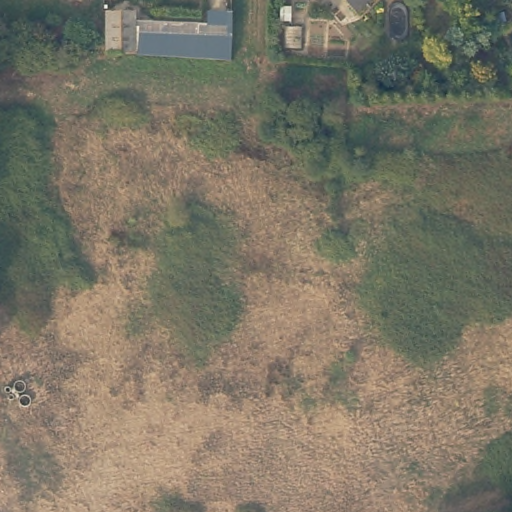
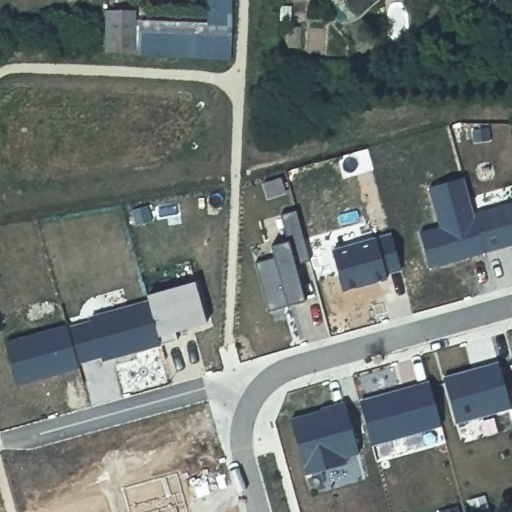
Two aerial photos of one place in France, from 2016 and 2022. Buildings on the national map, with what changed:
unchanged [(356,6),(349,0),(362,0),(356,6)]
unchanged [(135,50),(103,49),(103,7),(134,6),(135,50)]
unchanged [(233,22),(234,60),(142,58),(144,44),(161,43),(163,22),(233,22)]
new [(430,187),(464,178),(472,212),(512,203),(512,244),(484,252),(453,260),(451,257),(444,259),(444,264),(429,267),(419,232),(439,227),(430,187)]
new [(297,211),(309,261),(295,261),(305,302),(288,306),(288,303),(269,311),(255,262),(274,255),(271,247),(289,242),(282,214),(297,211)]
new [(195,283),(207,323),(159,336),(148,300),(146,295),(195,283)]
new [(66,323),(67,326),(89,319),(89,316),(148,300),(159,336),(160,343),(100,361),(99,355),(76,361),(78,367),(15,385),(3,340),(66,323)]
new [(499,362),(511,407),(457,421),(444,377),(499,362)]
new [(371,444),(359,403),(429,384),(441,425),(371,444)]
new [(322,410),(322,407),(344,400),(358,453),(343,458),(346,464),(304,475),(291,418),(322,410)]

